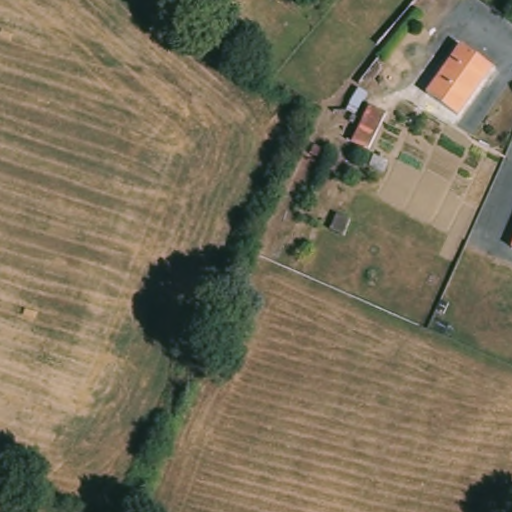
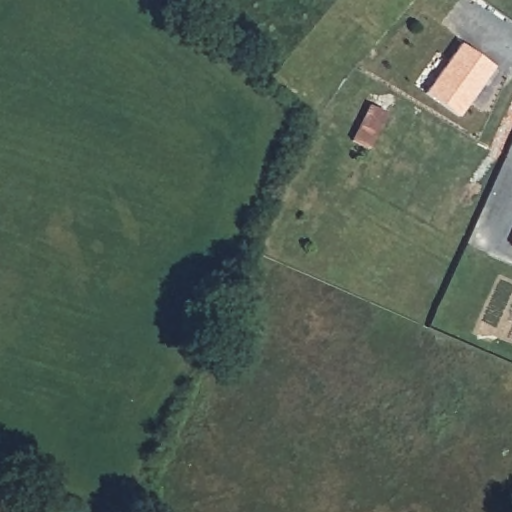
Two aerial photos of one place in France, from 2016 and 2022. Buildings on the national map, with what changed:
unchanged [(495,73),(455,119),(424,93),(462,46),(495,73)]
unchanged [(379,114),(360,151),(340,143),(359,105),(379,114)]
unchanged [(510,247),(512,244),(512,248),(510,247)]

